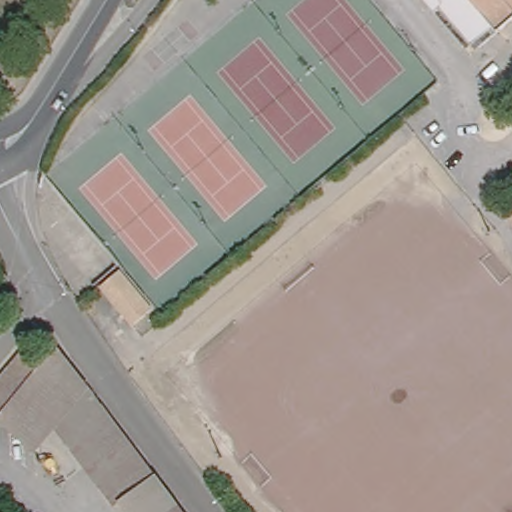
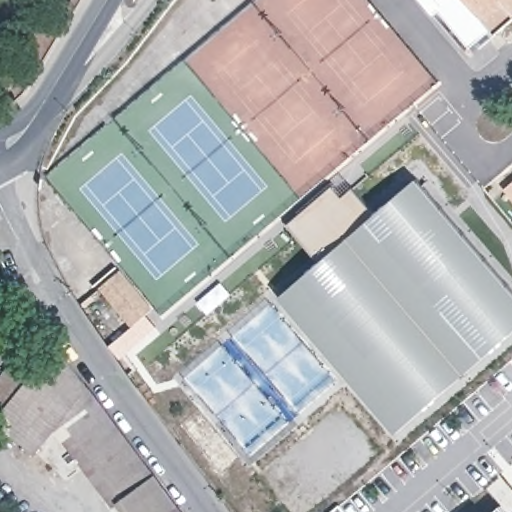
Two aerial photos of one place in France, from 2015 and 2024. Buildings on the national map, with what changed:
unchanged [(426,0),(512,0),(512,21),(472,55),(426,0)]
new [(337,187),(346,197),(355,189),(379,214),(419,180),(512,289),(512,336),(400,432),(283,297),(325,260),(292,225),(337,187)]
new [(512,181),(512,200),(502,189),(512,181)]
demolished [(509,224),(512,221),(512,228),(509,224)]
unchanged [(149,309),(128,326),(96,287),(115,270),(149,309)]
unchanged [(11,280),(8,283),(3,279),(5,275),(11,280)]
unchanged [(53,341),(46,350),(33,341),(41,331),(53,341)]
unchanged [(0,414),(0,379),(28,345),(46,360),(0,414)]
unchanged [(55,430),(38,452),(0,422),(0,414),(46,360),(58,345),(90,388),(55,430)]
unchanged [(156,474),(118,502),(113,505),(55,430),(90,388),(156,474)]
unchanged [(180,505),(170,512),(125,512),(118,502),(156,474),(180,505)]
unchanged [(186,512),(170,512),(180,505),(186,512)]
new [(502,505),(508,512),(494,512),(502,505)]
new [(340,507),(344,512),(334,512),(340,507)]

